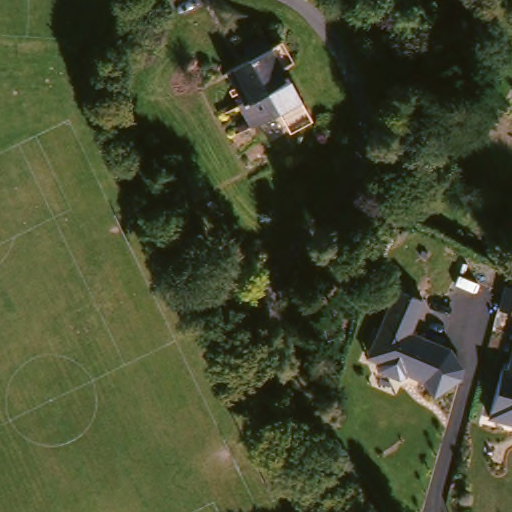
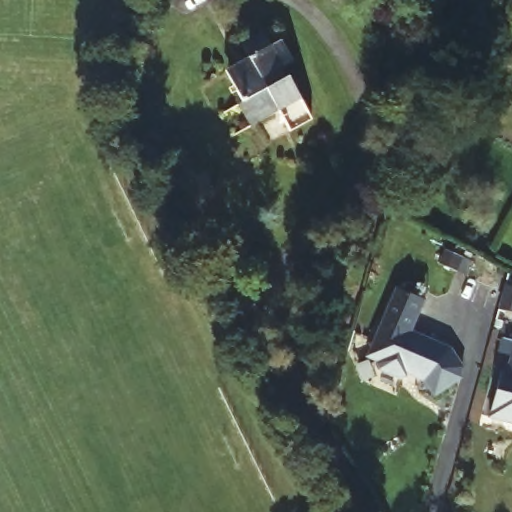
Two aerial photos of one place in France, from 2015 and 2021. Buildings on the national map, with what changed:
unchanged [(290,132),(279,111),(250,127),(239,105),(243,104),(229,78),(252,65),(241,44),(263,31),(283,67),(272,74),(278,84),(289,77),(312,120),(290,132)]
unchanged [(509,287),(512,288),(512,313),(503,311),(509,287)]
unchanged [(436,398),(426,382),(409,375),(408,377),(402,380),(381,370),(379,365),(389,345),(378,341),(399,290),(426,302),(413,333),(453,350),(465,369),(463,380),(436,398)]
unchanged [(504,366),(509,367),(512,358),(512,420),(491,414),(504,366)]

